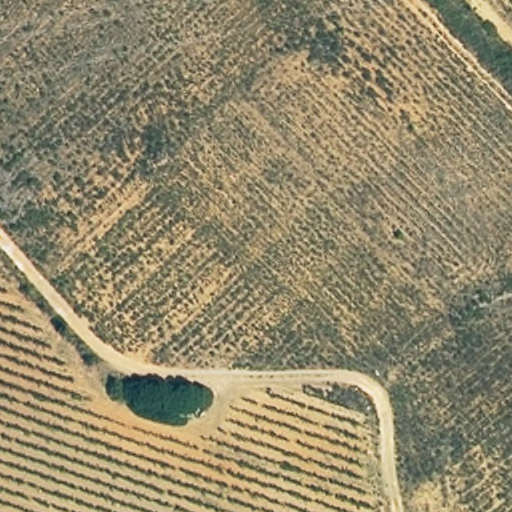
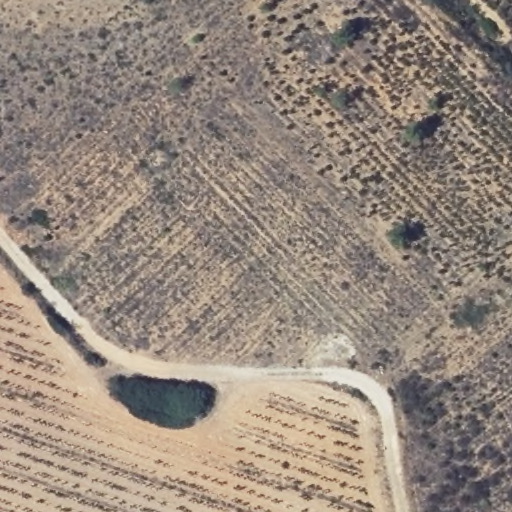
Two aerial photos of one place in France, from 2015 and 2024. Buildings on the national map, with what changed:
unchanged [(199,399),(203,417),(178,422),(172,402),(199,399)]

